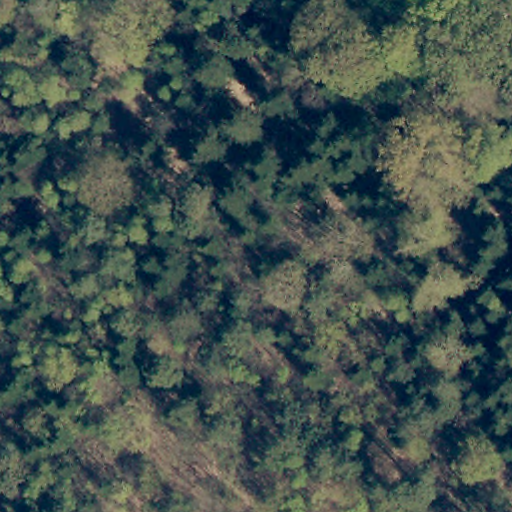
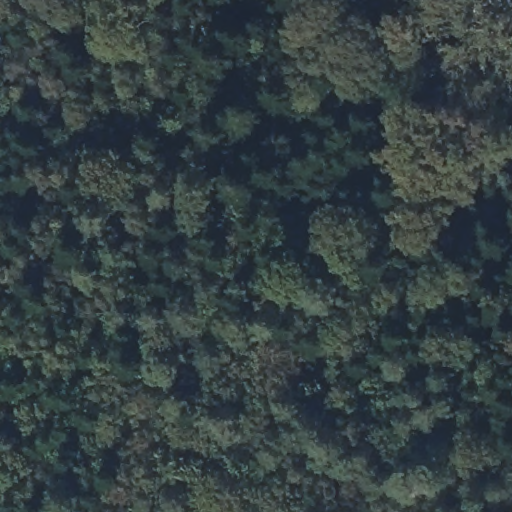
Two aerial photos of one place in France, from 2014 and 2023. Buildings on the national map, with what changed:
[]

